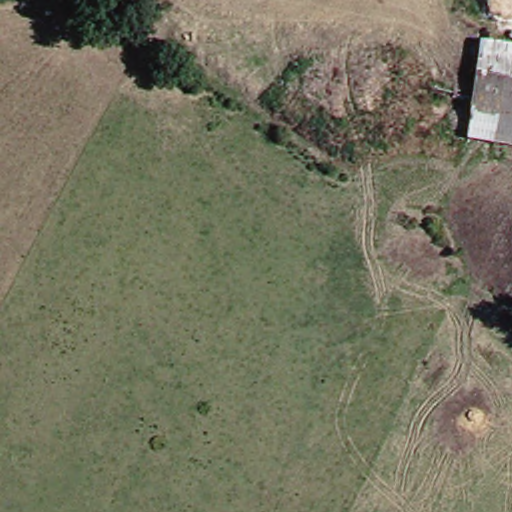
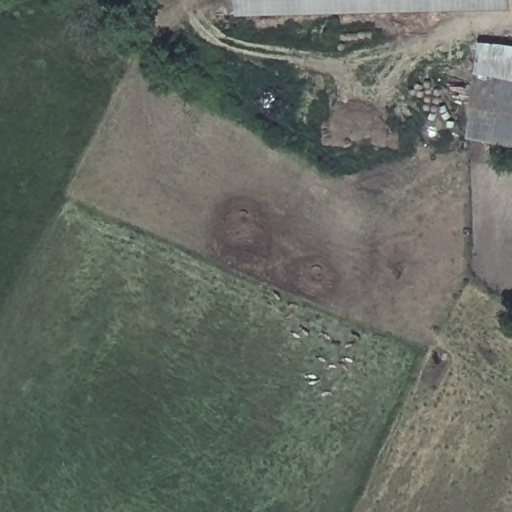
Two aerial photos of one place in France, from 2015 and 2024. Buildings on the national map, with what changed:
new [(239,0),(512,0),(512,9),(240,15),(239,0)]
unchanged [(476,40),(512,47),(512,147),(465,139),(476,40)]

